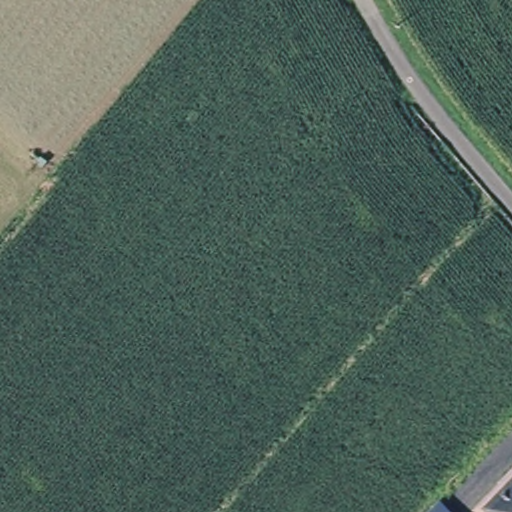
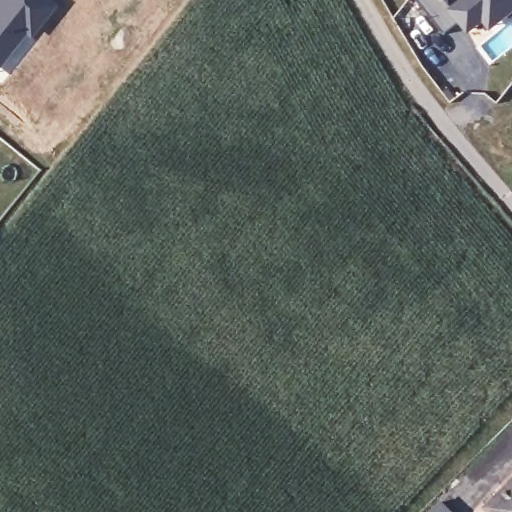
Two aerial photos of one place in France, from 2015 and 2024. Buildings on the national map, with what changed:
new [(33,39),(35,40),(7,74),(0,67),(0,0),(49,0),(57,6),(33,39)]
new [(445,29),(423,1),(422,0),(451,0),(452,2),(456,0),(512,0),(512,4),(508,6),(491,20),(484,11),(473,20),(469,24),(461,15),(445,29)]
unchanged [(483,507),(512,478),(512,512),(488,512),(483,507)]
unchanged [(432,505),(440,512),(425,512),(432,505)]

